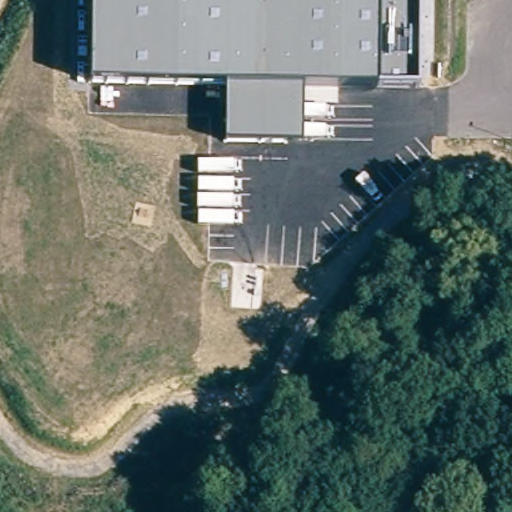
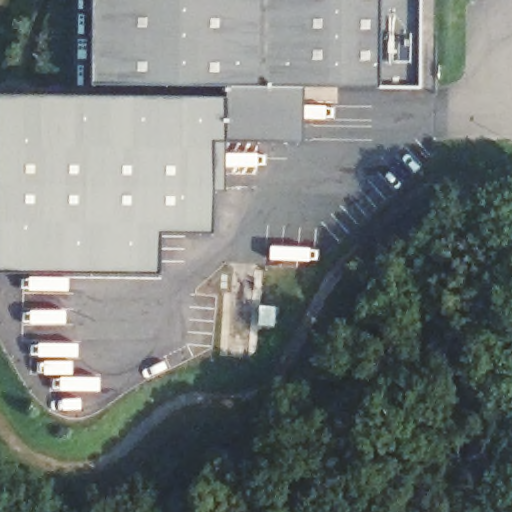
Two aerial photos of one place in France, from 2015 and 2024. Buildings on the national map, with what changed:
unchanged [(303,84),(304,141),(225,140),(226,84),(90,82),(91,0),(419,0),(419,86),(303,84)]
new [(156,273),(0,273),(0,95),(226,97),(225,140),(211,140),(211,234),(159,234),(156,273)]

